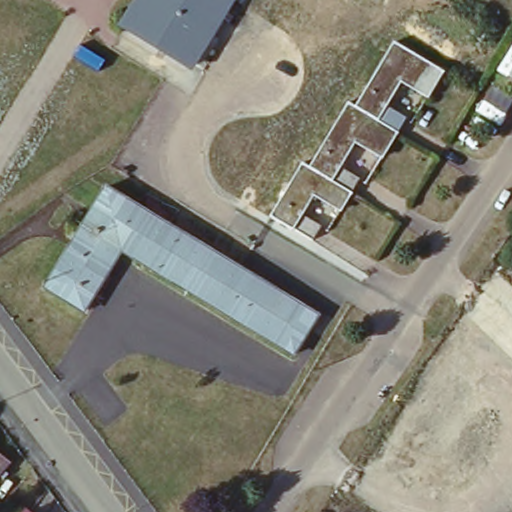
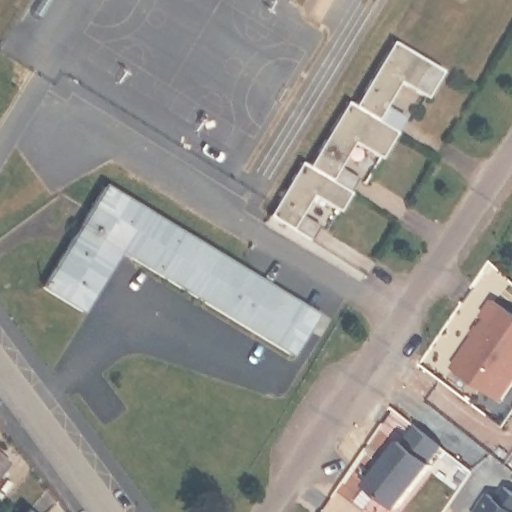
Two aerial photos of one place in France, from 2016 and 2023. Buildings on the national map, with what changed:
demolished [(123,29),(141,0),(235,0),(191,71),(123,29)]
unchanged [(436,67),(378,167),(352,152),(337,178),(363,195),(344,227),(317,209),(311,221),(315,223),(307,237),(289,226),(287,227),(264,212),(295,159),(303,164),(342,98),(350,104),(390,39),(436,67)]
unchanged [(322,322),(298,362),(121,252),(85,313),(45,288),(105,187),(322,322)]
new [(488,316),(484,313),(495,297),(512,309),(512,383),(502,397),(454,365),(488,316)]
new [(401,437),(404,439),(416,422),(443,443),(431,460),(433,462),(398,506),(366,481),(401,437)]
new [(0,473),(0,454),(10,462),(0,473)]
demolished [(0,481),(0,462),(9,470),(0,481)]
new [(489,487),(497,492),(504,481),(512,487),(512,512),(475,512),(489,487)]

